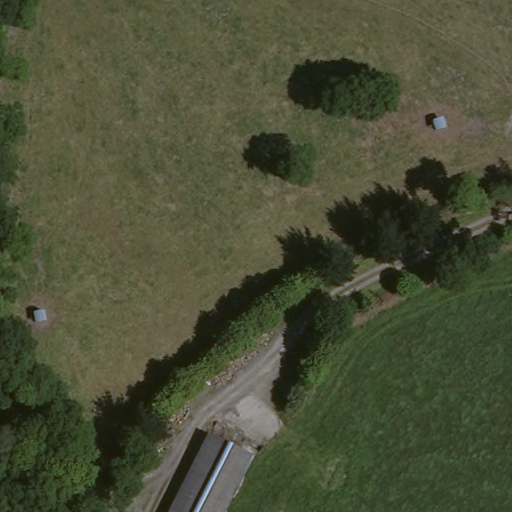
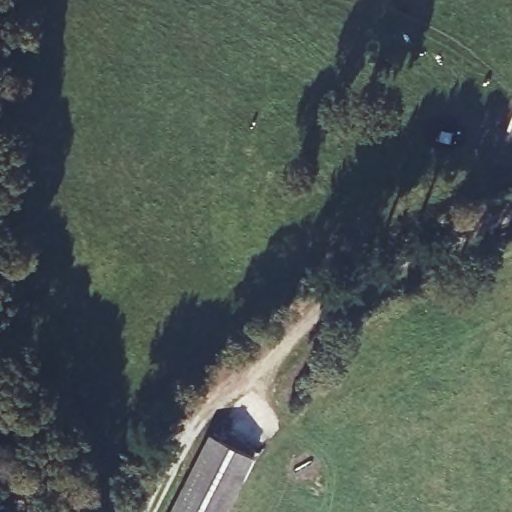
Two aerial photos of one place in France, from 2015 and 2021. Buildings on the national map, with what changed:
unchanged [(252,455),(225,512),(173,512),(209,436),(252,455)]

